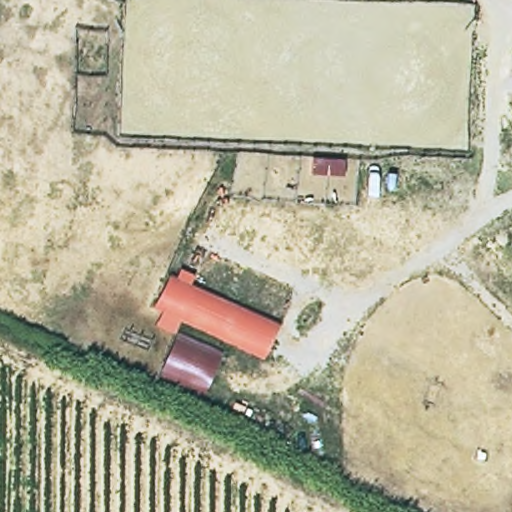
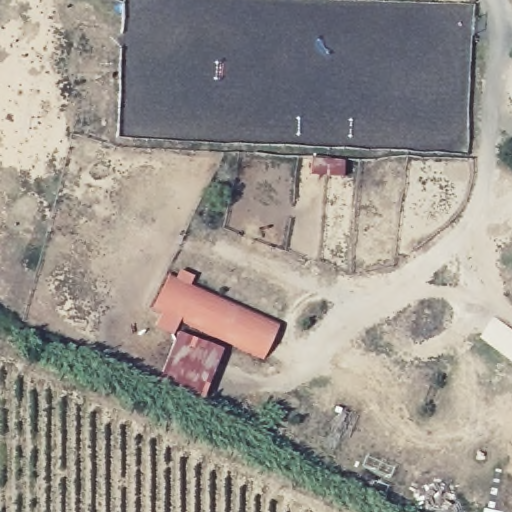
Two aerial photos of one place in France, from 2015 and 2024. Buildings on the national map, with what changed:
unchanged [(177,322),(172,334),(156,327),(162,312),(154,309),(171,276),(176,279),(180,270),(194,276),(190,285),(279,324),(262,360),(177,322)]
unchanged [(159,375),(177,334),(224,356),(204,396),(159,375)]

